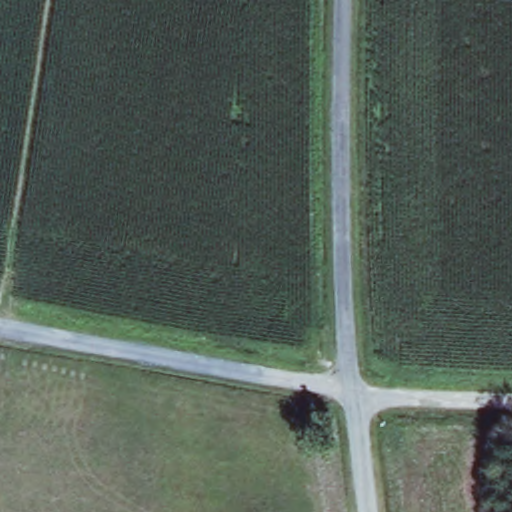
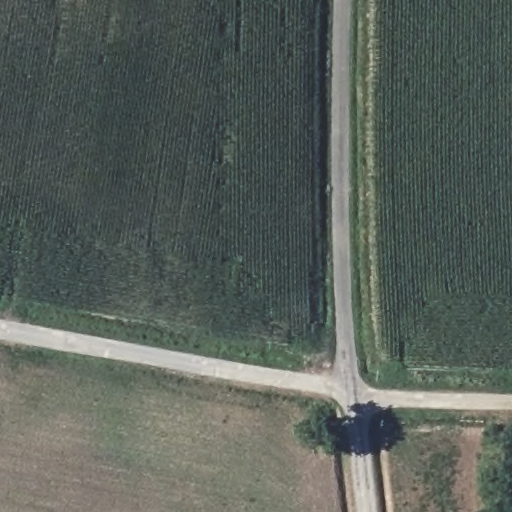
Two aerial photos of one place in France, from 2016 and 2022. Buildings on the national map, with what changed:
unchanged [(329,408),(328,428),(313,427),(314,407),(329,408)]

